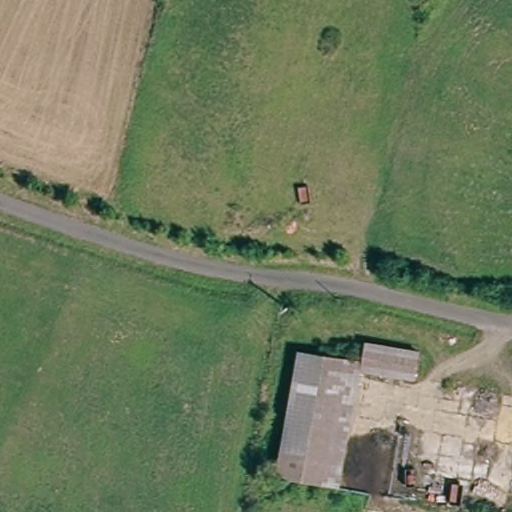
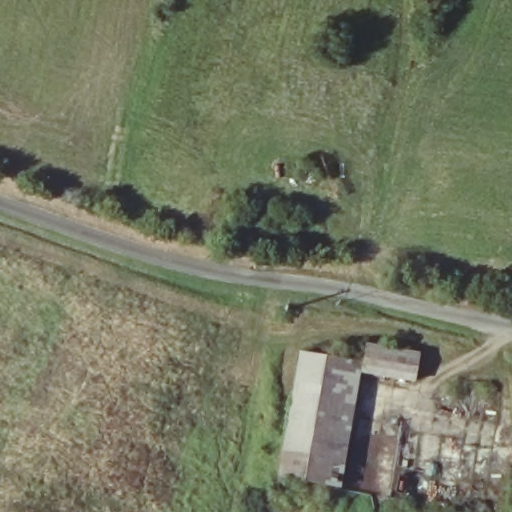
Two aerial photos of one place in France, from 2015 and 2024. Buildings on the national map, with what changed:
unchanged [(420,383),(368,372),(375,341),(426,351),(420,383)]
unchanged [(361,361),(340,495),(285,487),(305,353),(361,361)]

